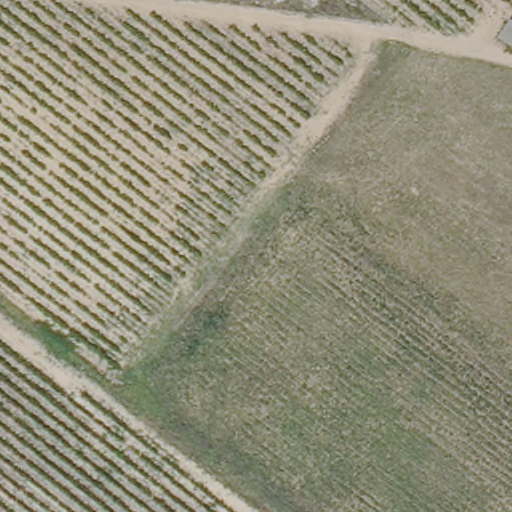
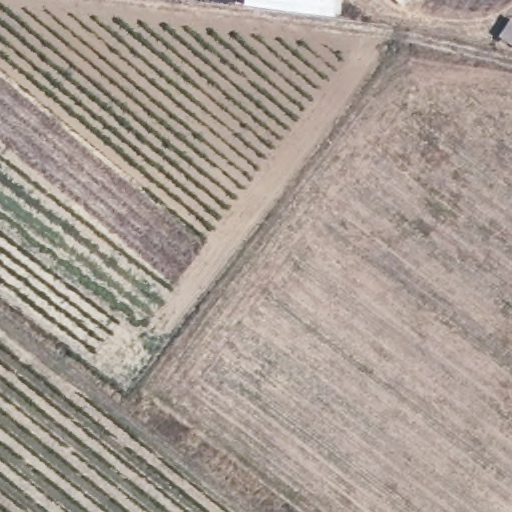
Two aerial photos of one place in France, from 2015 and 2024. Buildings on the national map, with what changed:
new [(245,6),(246,0),(338,0),(336,16),(245,6)]
unchanged [(501,34),(512,19),(512,41),(501,34)]

